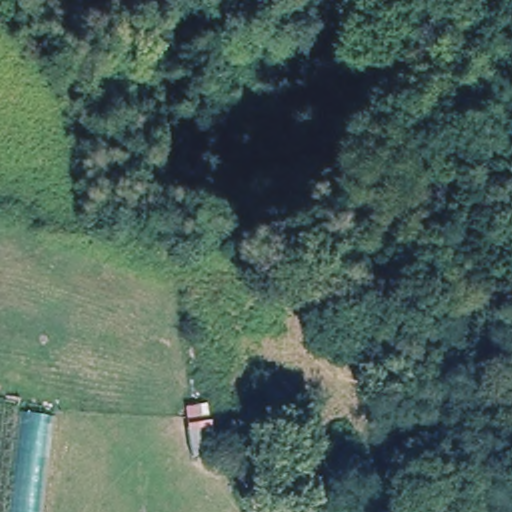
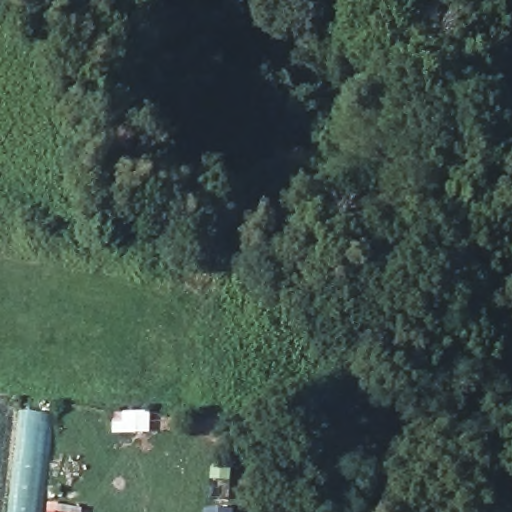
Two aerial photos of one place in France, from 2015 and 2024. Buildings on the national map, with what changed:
unchanged [(49,414),(39,512),(9,512),(21,409),(49,414)]

